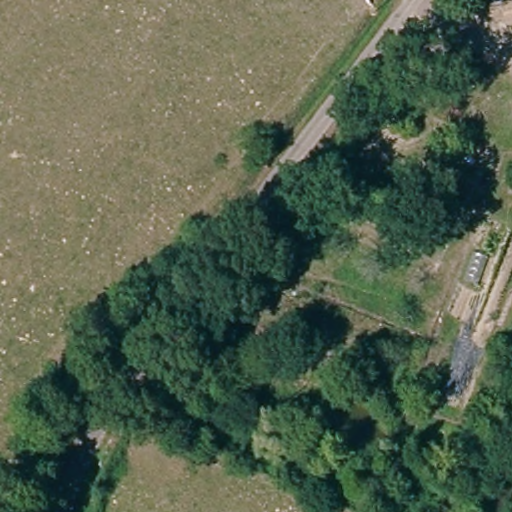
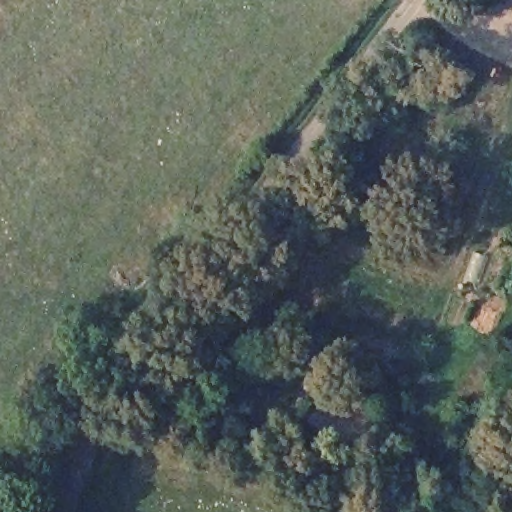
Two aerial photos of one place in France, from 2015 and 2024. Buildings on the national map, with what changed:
unchanged [(453,102),(448,120),(440,117),(436,135),(415,130),(423,95),(453,102)]

